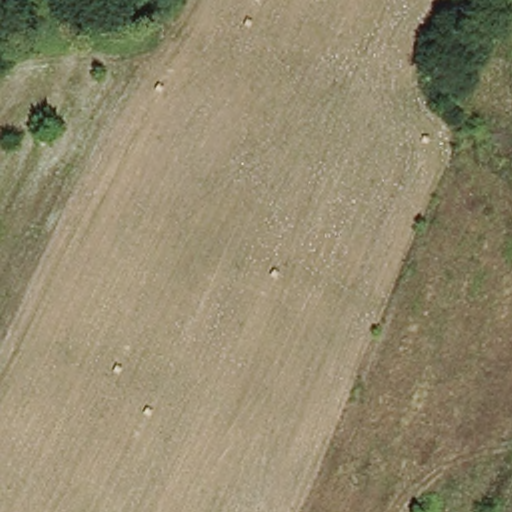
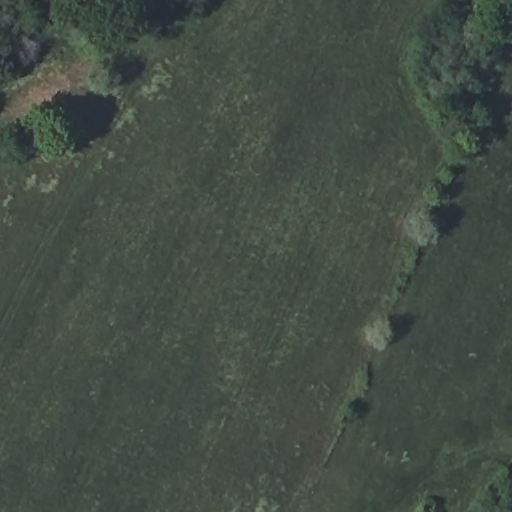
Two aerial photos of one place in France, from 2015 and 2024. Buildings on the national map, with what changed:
[]

